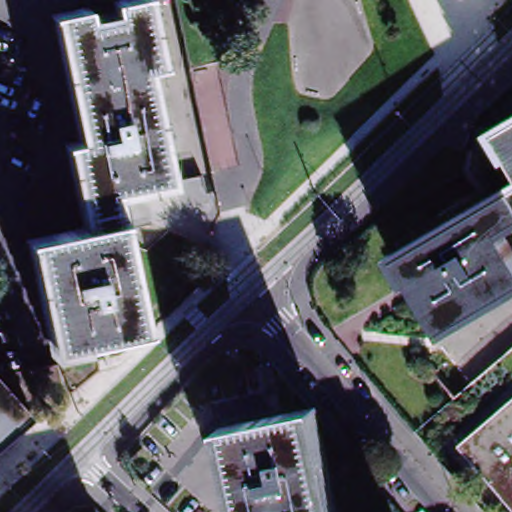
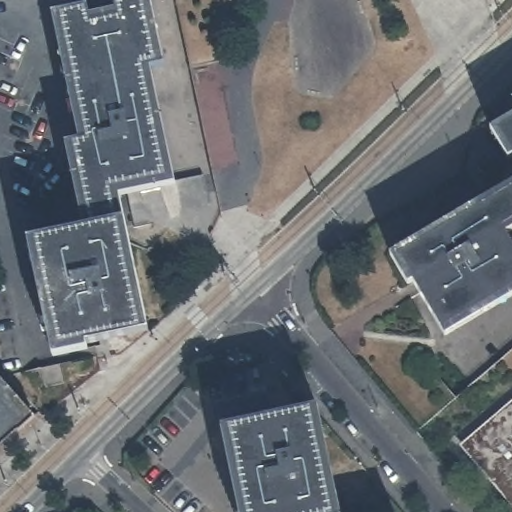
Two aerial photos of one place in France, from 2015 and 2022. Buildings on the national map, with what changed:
unchanged [(141,335),(57,352),(35,241),(91,230),(87,217),(72,146),(87,142),(60,16),(87,10),(90,26),(118,20),(115,5),(134,0),(143,0),(158,69),(144,71),(168,184),(112,195),(115,211),(120,231),(141,335)]
unchanged [(512,118),(512,151),(498,126),(512,118)]
unchanged [(177,182),(202,176),(208,205),(182,210),(177,182)]
unchanged [(500,225),(512,246),(512,285),(441,326),(397,251),(487,197),(498,191),(512,183),(512,218),(503,224),(500,225)]
unchanged [(473,420),(471,416),(456,398),(460,394),(478,378),(512,349),(512,386),(483,410),(473,420)]
unchanged [(41,371),(59,367),(63,387),(45,391),(41,371)]
unchanged [(37,415),(0,449),(0,373),(37,415)]
unchanged [(512,508),(458,445),(512,399),(512,508)]
unchanged [(227,423),(310,405),(333,512),(246,512),(227,423)]

